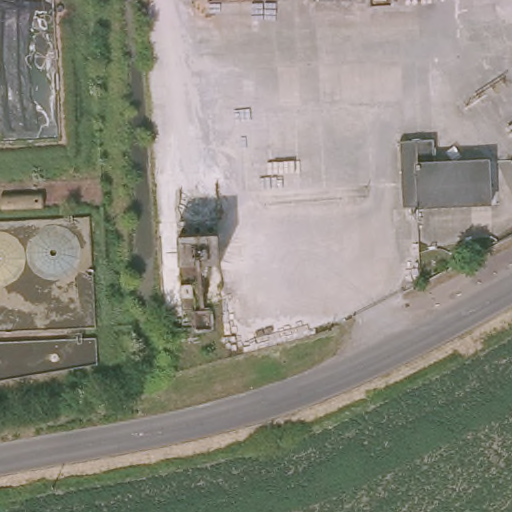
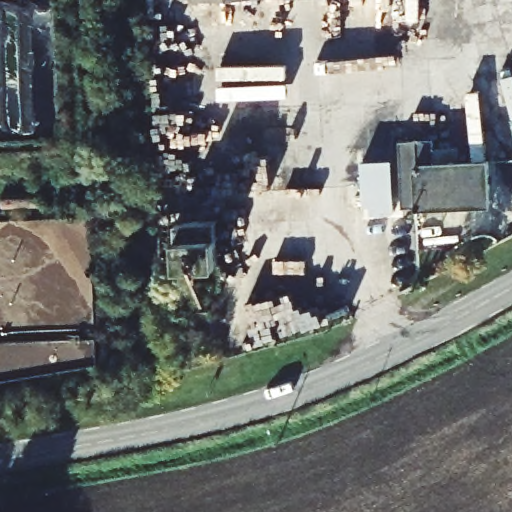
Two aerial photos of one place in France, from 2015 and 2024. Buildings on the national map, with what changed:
unchanged [(447,167),(498,165),(500,209),(414,212),(411,145),(445,144),(447,167)]
new [(397,212),(373,214),(373,204),(366,205),(363,160),(394,158),(397,212)]
unchanged [(216,272),(175,275),(173,231),(213,230),(216,272)]
unchanged [(96,340),(99,365),(0,383),(0,344),(96,340)]

